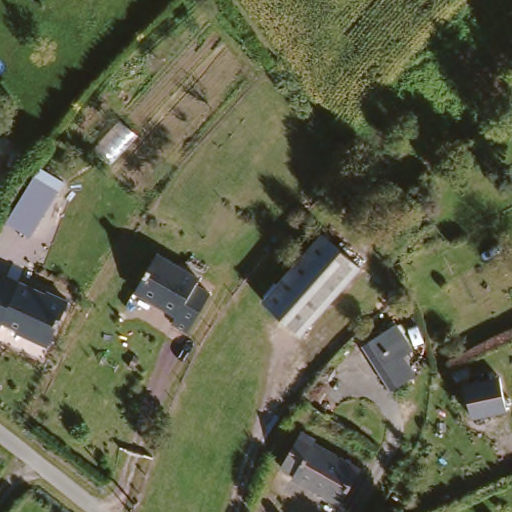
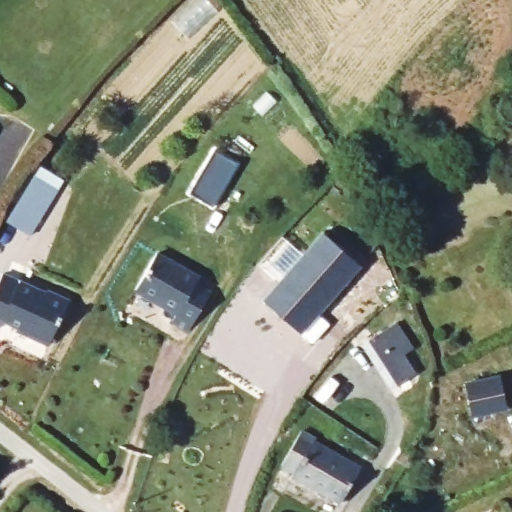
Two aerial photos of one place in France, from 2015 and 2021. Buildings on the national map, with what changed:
new [(216,150),(241,164),(216,209),(191,196),(216,150)]
unchanged [(1,215),(39,158),(65,176),(26,232),(1,215)]
unchanged [(264,301),(320,233),(358,264),(301,332),(264,301)]
unchanged [(203,267),(199,274),(215,283),(189,322),(171,312),(178,302),(159,292),(157,294),(133,282),(158,244),(203,267)]
unchanged [(0,260),(78,292),(52,341),(0,321),(0,260)]
unchanged [(400,317),(412,339),(404,347),(418,370),(390,387),(359,340),(400,317)]
unchanged [(455,376),(496,364),(509,401),(468,415),(455,376)]
unchanged [(337,503),(288,474),(291,470),(277,463),(308,428),(322,437),(319,440),(363,469),(337,503)]

